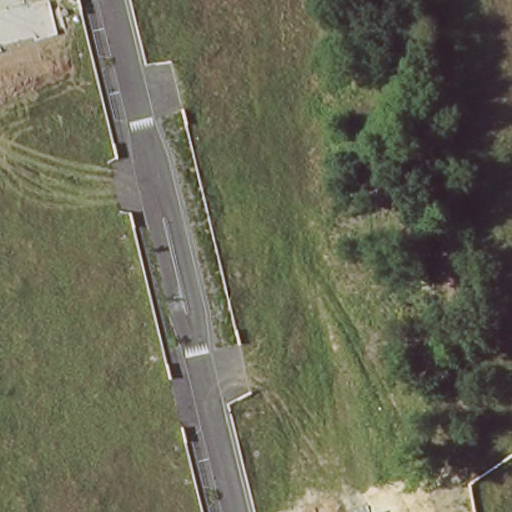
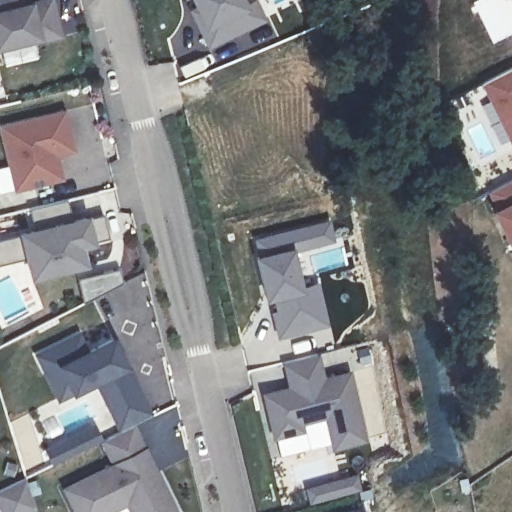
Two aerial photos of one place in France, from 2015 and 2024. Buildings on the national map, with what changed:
new [(27,4),(42,0),(50,0),(59,35),(35,41),(35,37),(0,46),(0,0),(26,0),(27,4)]
new [(266,18),(208,51),(183,0),(245,0),(258,0),(266,18)]
new [(484,84),(512,70),(512,141),(484,84)]
new [(71,149),(48,155),(49,162),(55,161),(59,177),(13,189),(0,134),(0,125),(62,110),(71,149)]
new [(512,177),(512,261),(488,210),(491,208),(484,192),(512,177)]
new [(0,264),(0,238),(18,232),(33,228),(29,210),(68,201),(72,221),(89,217),(102,216),(108,238),(94,241),(95,247),(84,250),(87,266),(30,281),(24,258),(0,264)]
new [(331,219),(336,242),(294,251),(293,247),(254,254),(251,237),(331,219)]
new [(293,247),(294,251),(302,283),(320,282),(331,327),(276,339),(254,254),(293,247)]
new [(119,433),(99,391),(78,400),(77,397),(59,404),(36,357),(39,356),(35,347),(80,326),(92,352),(123,338),(155,415),(133,426),(119,433)]
new [(364,440),(332,447),(324,416),(298,422),(300,430),(273,436),(262,393),(279,389),(282,396),(290,395),(282,361),(315,352),(321,379),(348,372),(364,440)]
new [(91,421),(102,442),(56,467),(45,444),(91,421)]
new [(119,433),(133,426),(143,449),(155,472),(175,512),(130,512),(125,502),(104,512),(75,512),(63,487),(112,463),(102,442),(119,433)]
new [(359,492),(311,504),(308,492),(356,477),(359,492)]
new [(31,512),(2,512),(0,508),(0,493),(25,482),(34,511),(31,512)]

